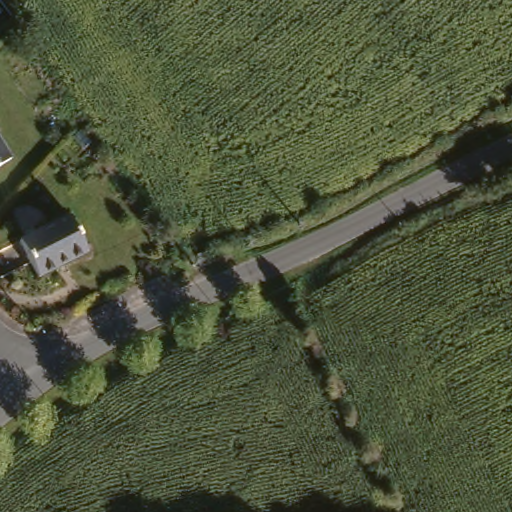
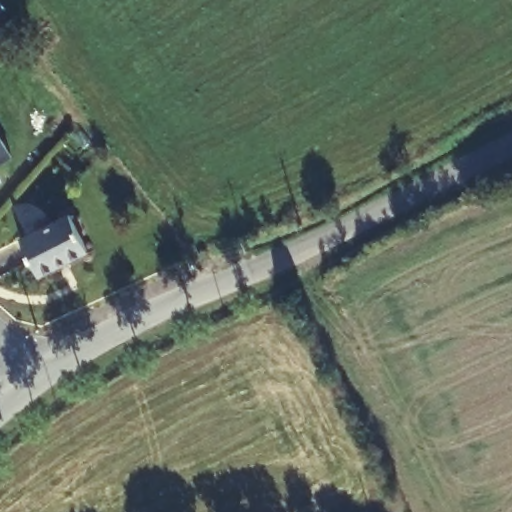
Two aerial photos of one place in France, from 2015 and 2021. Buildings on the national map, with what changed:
unchanged [(0,164),(0,143),(11,160),(0,164)]
unchanged [(36,275),(19,237),(67,214),(85,249),(36,275)]

